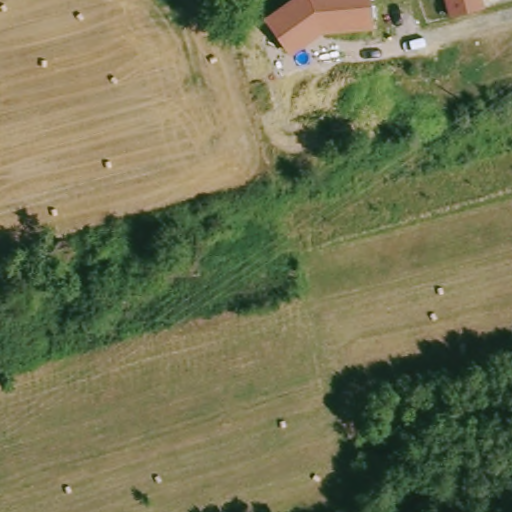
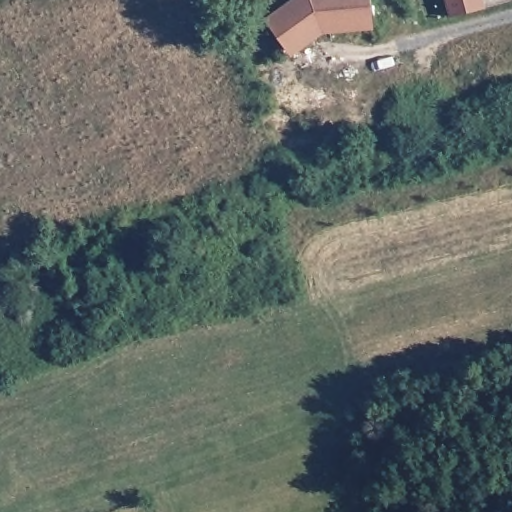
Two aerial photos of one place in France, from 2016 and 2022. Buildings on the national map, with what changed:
unchanged [(262,18),(289,0),(369,0),(372,29),(320,34),(290,56),(262,18)]
unchanged [(446,0),(479,0),(481,8),(450,17),(446,0)]

